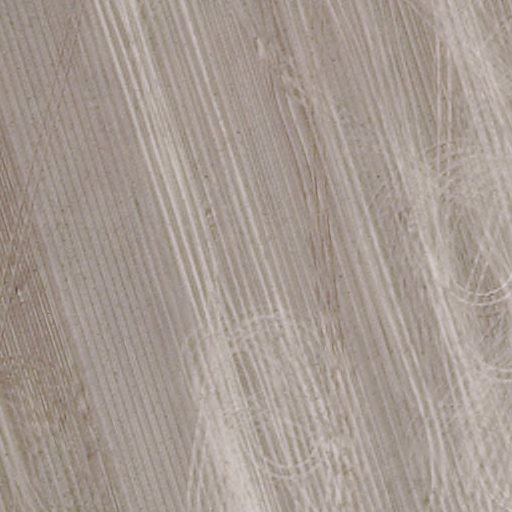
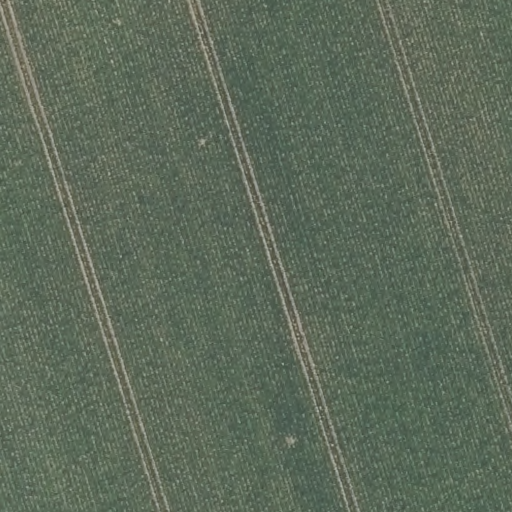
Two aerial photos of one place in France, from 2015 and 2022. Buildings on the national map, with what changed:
[]

